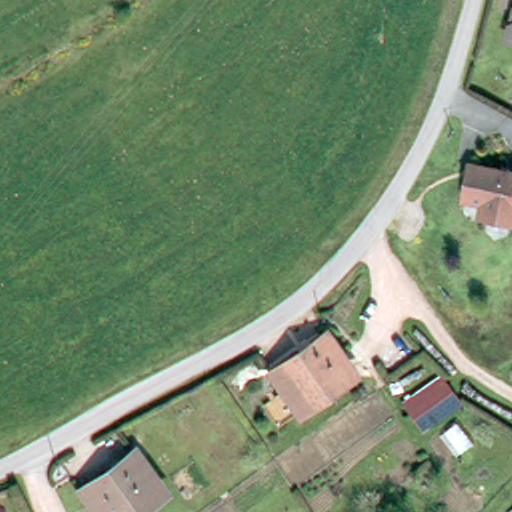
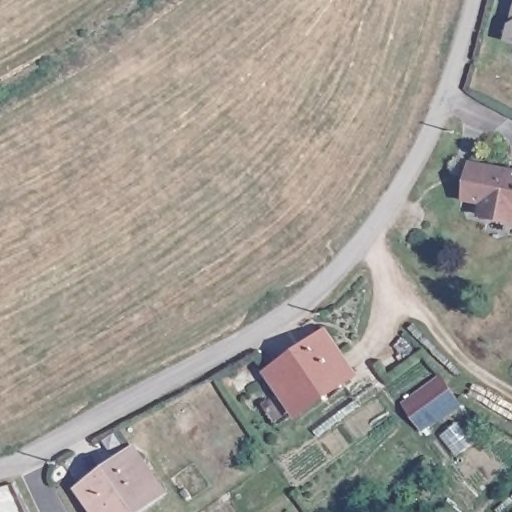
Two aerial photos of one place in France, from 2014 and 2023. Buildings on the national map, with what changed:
unchanged [(512,21),(512,37),(508,36),(512,21)]
unchanged [(508,213),(471,206),(473,194),(459,191),(464,170),(467,156),(474,157),(512,164),(512,198),(512,197),(508,213)]
unchanged [(351,376),(296,415),(268,373),(324,336),(351,376)]
unchanged [(442,385),(458,407),(420,433),(404,411),(442,385)]
unchanged [(159,488),(126,512),(96,512),(78,485),(131,447),(159,488)]

